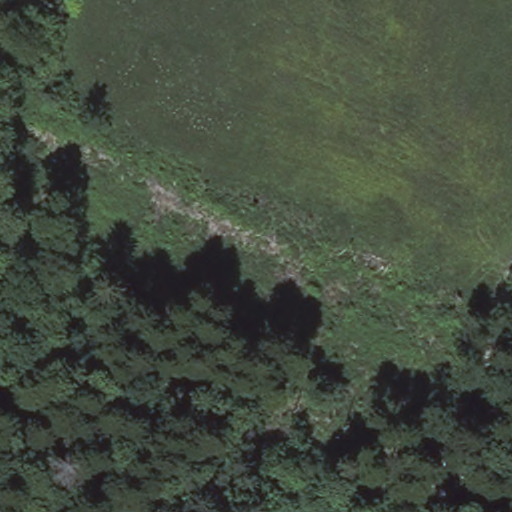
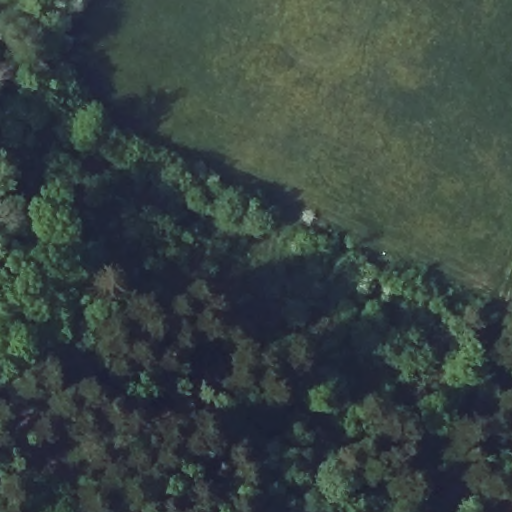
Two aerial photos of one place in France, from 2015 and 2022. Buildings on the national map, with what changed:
[]

